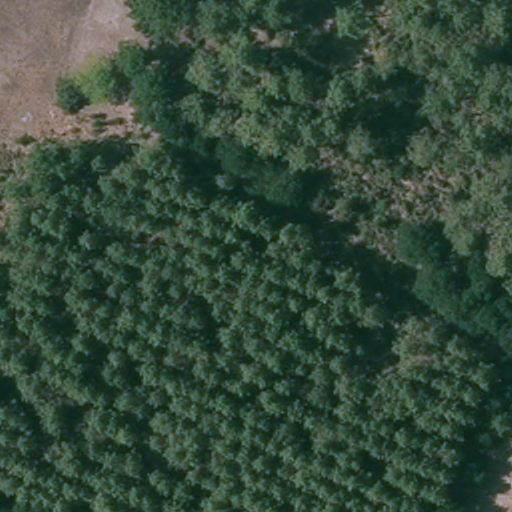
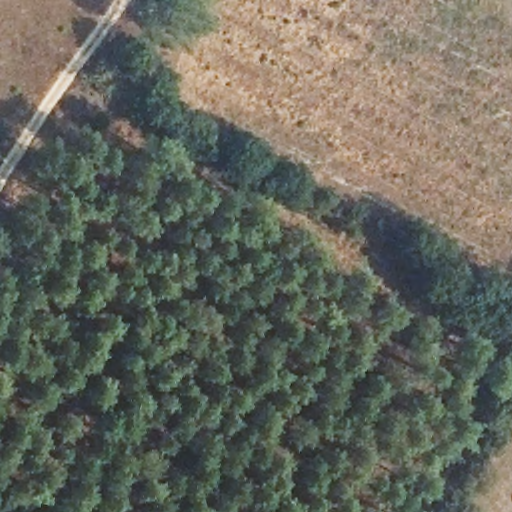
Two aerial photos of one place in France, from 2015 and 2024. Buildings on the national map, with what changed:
[]

